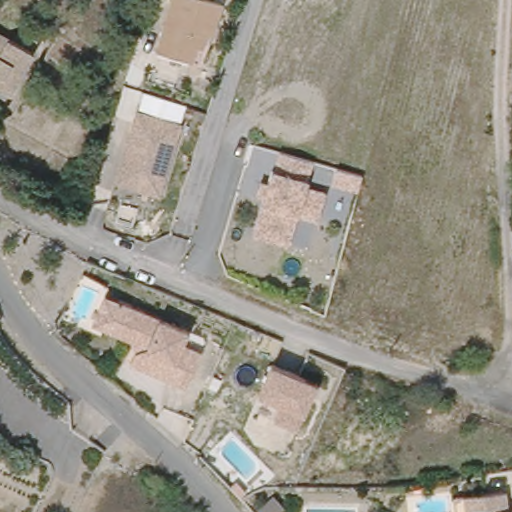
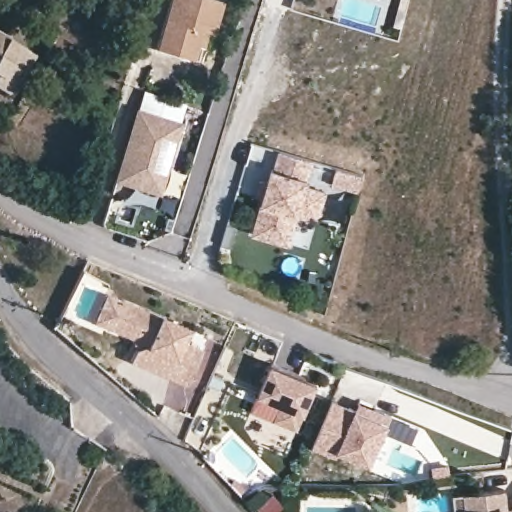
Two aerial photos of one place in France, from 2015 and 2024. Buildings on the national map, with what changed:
unchanged [(196,45),(192,59),(155,48),(170,0),(221,0),(222,0),(212,34),(206,32),(202,47),(196,45)]
unchanged [(2,41),(30,57),(5,98),(0,95),(0,40),(2,41)]
unchanged [(180,122),(158,192),(115,178),(137,109),(180,122)]
unchanged [(307,160),(300,186),(320,192),(312,219),(292,213),(283,243),(248,233),(267,169),(270,170),(275,151),(307,160)]
unchanged [(187,341),(206,349),(191,384),(135,360),(140,349),(135,337),(116,329),(97,321),(110,293),(128,301),(192,328),(187,341)]
unchanged [(297,424),(274,414),(281,398),(258,388),(271,357),(317,377),(297,424)]
new [(332,398),(355,408),(358,400),(390,414),(370,463),(337,449),(335,455),(312,445),(332,398)]
unchanged [(467,508),(465,488),(475,487),(505,483),(507,502),(512,502),(512,512),(470,512),(470,508),(467,508)]

